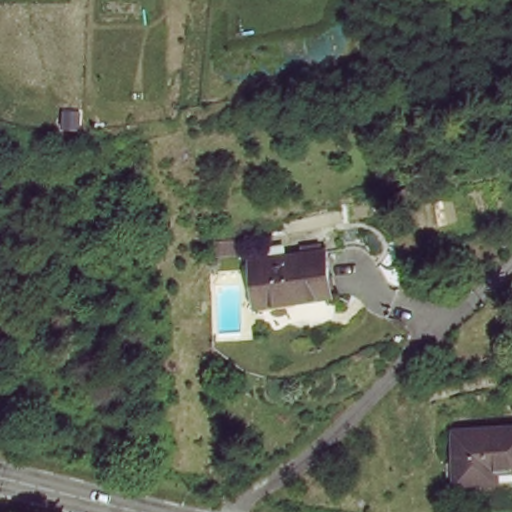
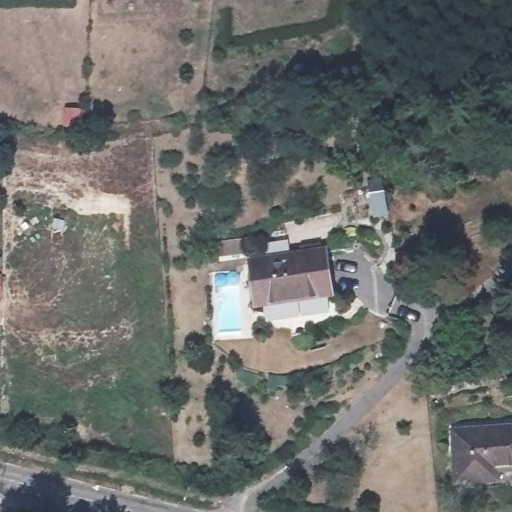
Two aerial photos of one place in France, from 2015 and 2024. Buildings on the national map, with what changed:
unchanged [(336,297),(263,308),(258,265),(330,254),(336,297)]
unchanged [(485,485),(453,482),(457,428),(512,431),(512,470),(486,468),(485,485)]

